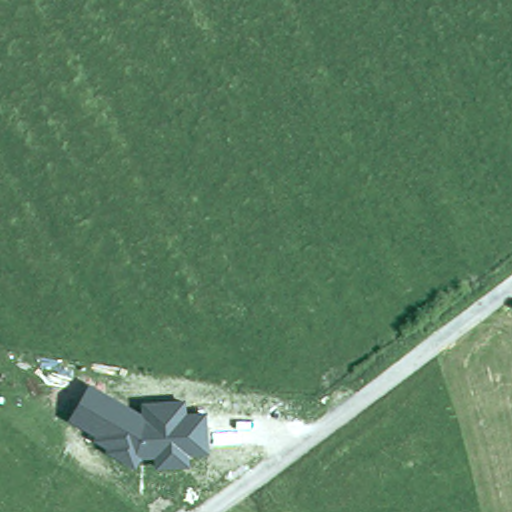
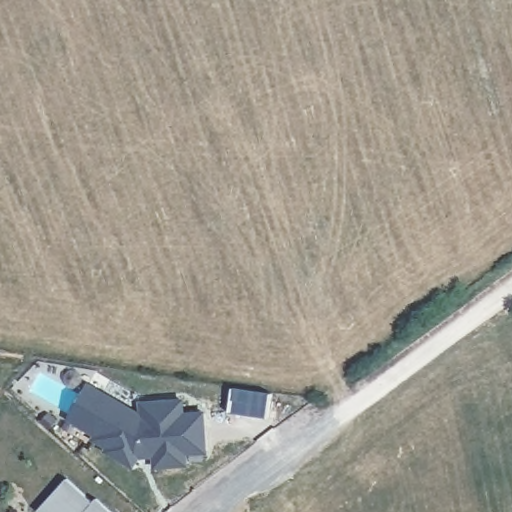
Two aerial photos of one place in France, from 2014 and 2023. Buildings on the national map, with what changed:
unchanged [(142,411),(141,401),(185,397),(187,412),(207,410),(210,452),(189,453),(190,466),(155,467),(154,456),(142,456),(135,469),(106,452),(108,449),(93,440),(96,435),(67,418),(90,382),(142,411)]
new [(94,501),(97,498),(112,512),(38,512),(37,511),(67,478),(94,501)]

